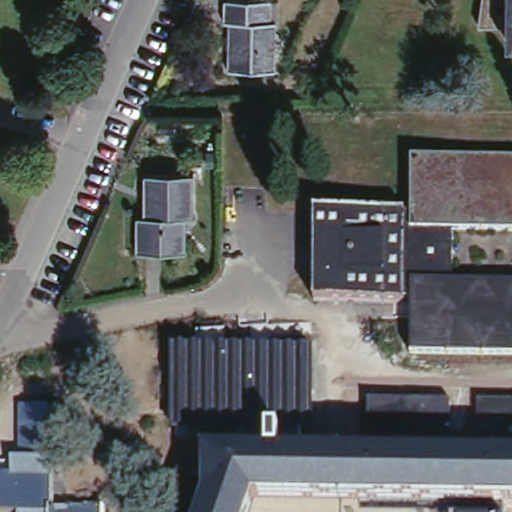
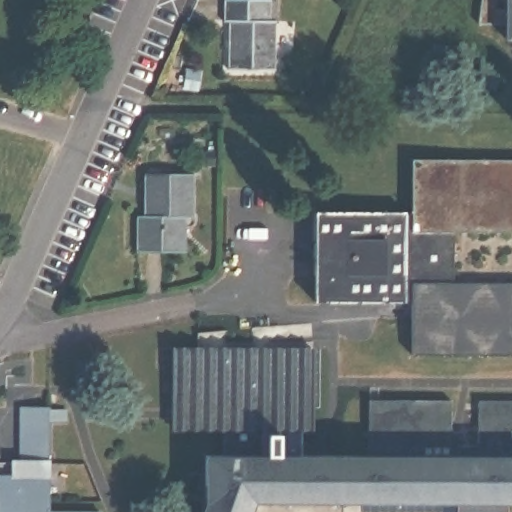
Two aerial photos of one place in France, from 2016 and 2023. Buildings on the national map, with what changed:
unchanged [(477,0),(505,0),(505,21),(492,21),(476,20),(477,0)]
unchanged [(505,21),(505,0),(512,0),(512,39),(505,39),(505,21)]
unchanged [(270,1),(270,22),(276,22),(276,71),(230,72),(230,25),(225,25),(225,2),(270,1)]
unchanged [(315,214),(411,214),(412,161),(512,163),(512,234),(452,234),(451,283),(512,283),(512,355),(411,355),(410,305),(315,302),(315,214)]
unchanged [(138,218),(146,218),(145,178),(193,177),(194,222),(184,222),(185,254),(138,254),(138,218)]
unchanged [(311,350),(311,432),(262,431),(261,457),(223,456),(224,430),(174,430),(175,350),(311,350)]
unchanged [(223,456),(261,457),(368,457),(370,401),(450,401),(451,446),(476,446),(476,401),(512,402),(512,506),(458,505),(255,505),(252,512),(201,512),(204,505),(205,456),(223,456)]
unchanged [(21,476),(22,466),(19,466),(19,410),(46,411),(46,512),(0,512),(0,476),(7,476),(21,476)]
unchanged [(505,506),(505,512),(489,512),(489,505),(505,506)]

